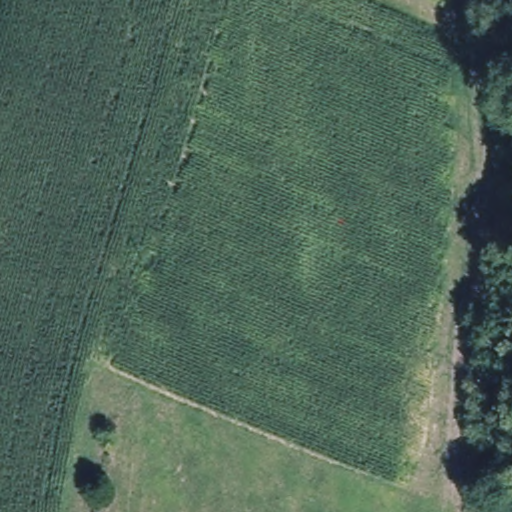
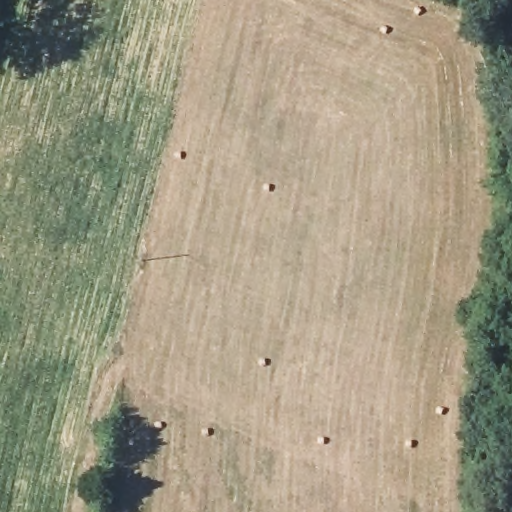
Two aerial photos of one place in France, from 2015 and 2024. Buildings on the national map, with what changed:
[]

